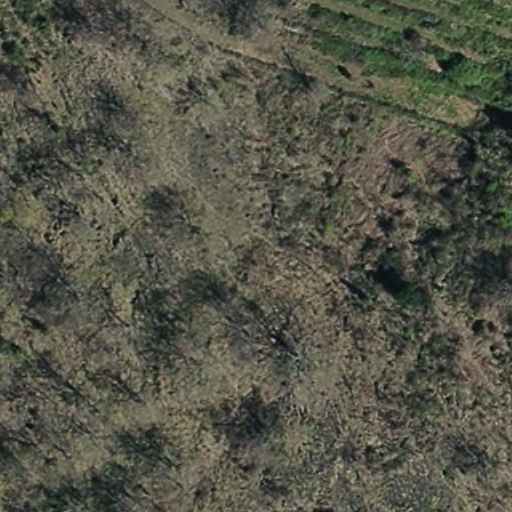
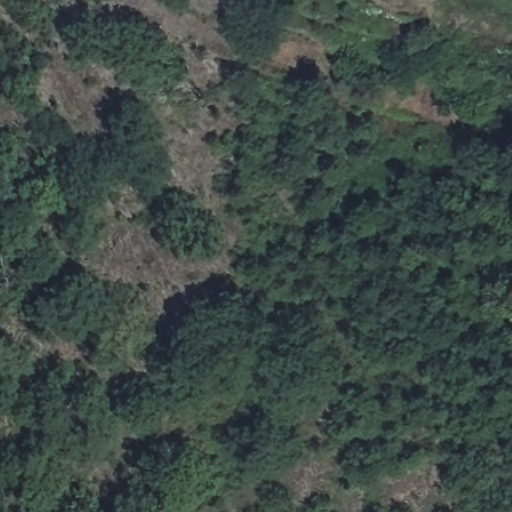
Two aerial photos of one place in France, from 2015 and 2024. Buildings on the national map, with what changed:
[]

